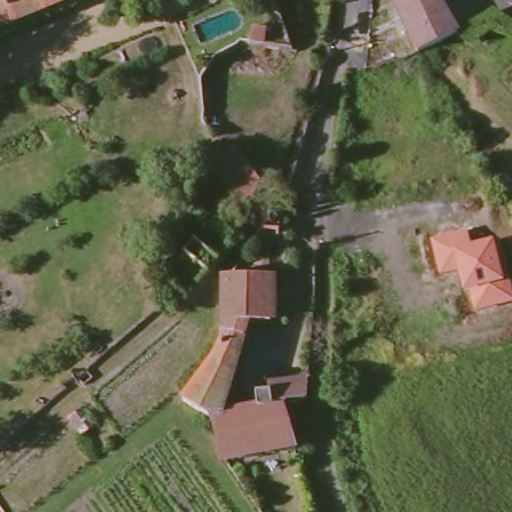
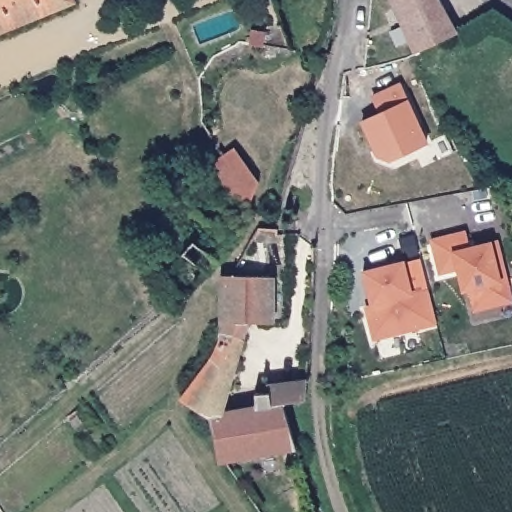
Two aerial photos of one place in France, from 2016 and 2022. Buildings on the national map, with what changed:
unchanged [(68,0),(70,3),(0,31),(0,0),(68,0)]
unchanged [(418,54),(417,52),(393,0),(439,0),(457,33),(457,34),(418,54)]
unchanged [(252,44),(254,31),(266,34),(263,46),(252,44)]
new [(430,142),(391,161),(375,157),(360,121),(379,113),(372,98),(402,83),(408,99),(430,142)]
unchanged [(235,200),(211,165),(223,156),(235,148),(260,183),(245,215),(235,200)]
unchanged [(468,292),(462,294),(457,273),(438,277),(430,240),(467,233),(472,247),(494,242),(498,240),(512,293),(512,304),(473,313),(468,292)]
new [(365,306),(370,306),(360,272),(405,262),(413,293),(428,289),(437,324),(373,341),(365,306)]
unchanged [(257,456),(221,463),(217,464),(206,418),(177,400),(208,360),(217,337),(217,331),(218,276),(227,277),(282,277),(282,323),(243,323),(225,391),(219,413),(253,407),(252,395),(267,393),(265,385),(303,380),(302,400),(289,402),(279,404),(293,449),(257,456)]

